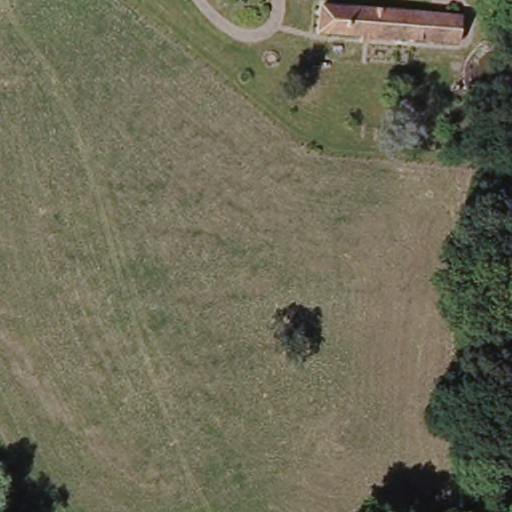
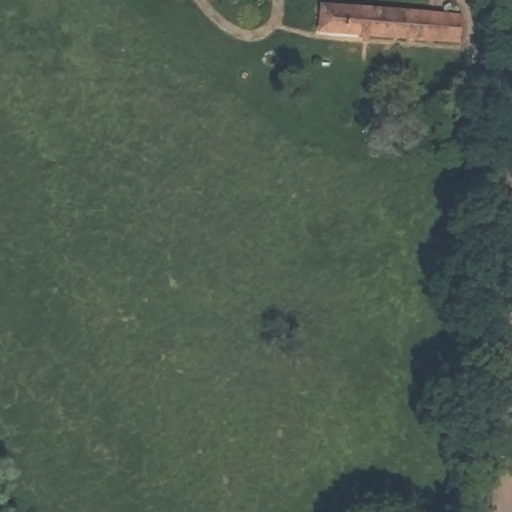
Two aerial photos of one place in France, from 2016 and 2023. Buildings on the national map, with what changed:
unchanged [(421,17),(422,7),(445,9),(444,19),(460,21),(457,51),(317,37),(321,9),(421,17)]

